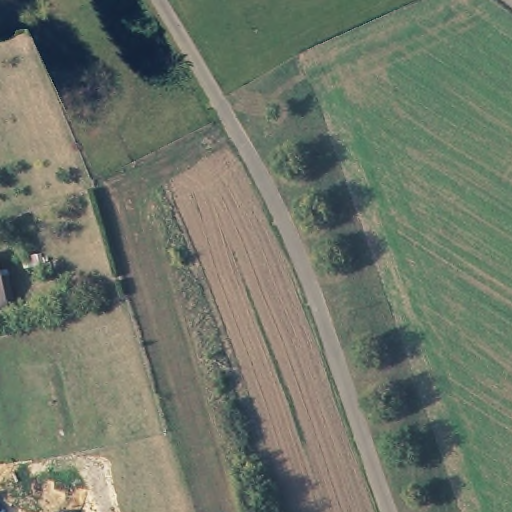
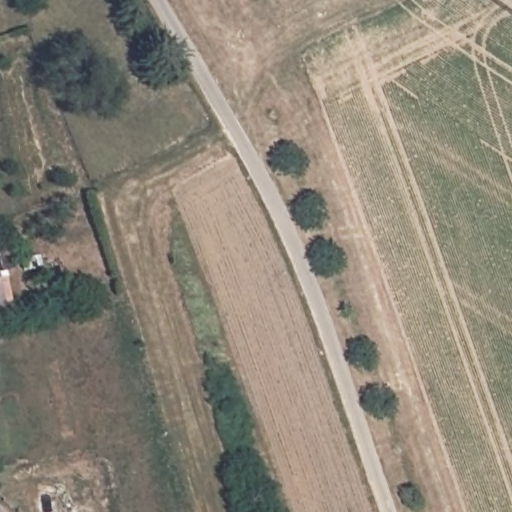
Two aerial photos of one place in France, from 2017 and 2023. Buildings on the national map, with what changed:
unchanged [(0,316),(0,298),(4,315),(0,316)]

